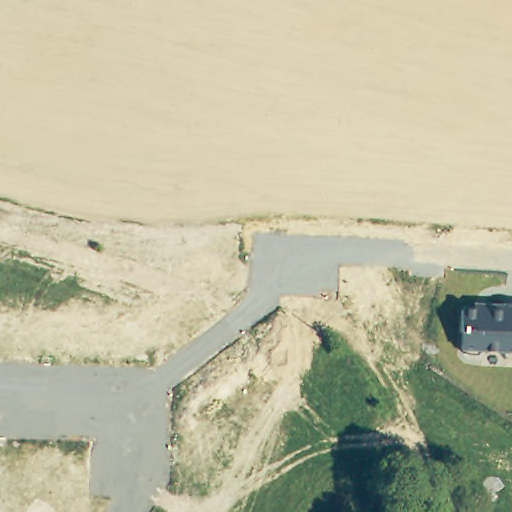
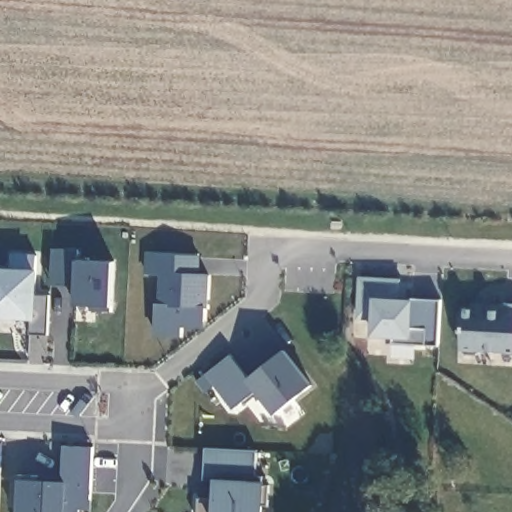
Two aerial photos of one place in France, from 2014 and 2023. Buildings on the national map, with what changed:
new [(80,258),(113,260),(112,306),(114,312),(93,311),(94,305),(75,303),(74,286),(52,285),(53,247),(79,247),(80,258)]
new [(38,267),(38,294),(49,294),(47,333),(29,333),(30,318),(0,317),(0,266),(10,266),(11,251),(37,252),(36,267),(38,267)]
new [(203,273),(212,274),(210,308),(205,307),(205,328),(183,327),(182,337),(154,335),(155,302),(159,302),(160,275),(146,274),(146,253),(203,256),(203,273)]
unchanged [(438,344),(393,342),(393,336),(372,335),(372,320),(356,320),(359,275),(401,277),(400,296),(440,298),(438,344)]
unchanged [(512,304),(512,352),(481,351),(475,355),(465,355),(459,350),(460,308),(471,308),(471,302),(512,304)]
new [(275,413),(256,390),(232,409),(205,373),(231,355),(248,377),(285,348),(312,384),(275,413)]
new [(79,507),(79,512),(16,512),(18,477),(62,479),(63,445),(92,447),(89,508),(79,507)]
new [(266,478),(265,512),(198,512),(198,497),(214,497),(215,478),(204,478),(205,447),(257,449),(256,478),(266,478)]

